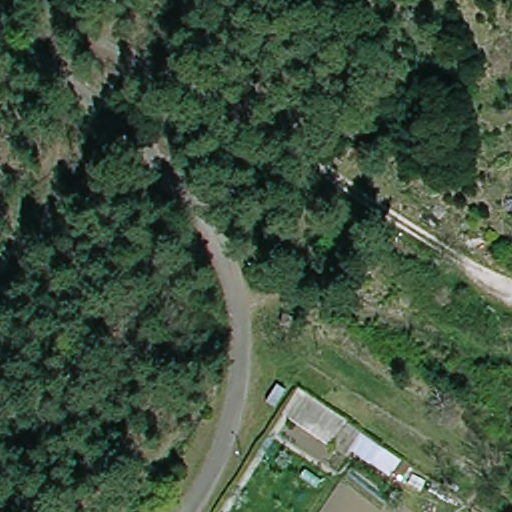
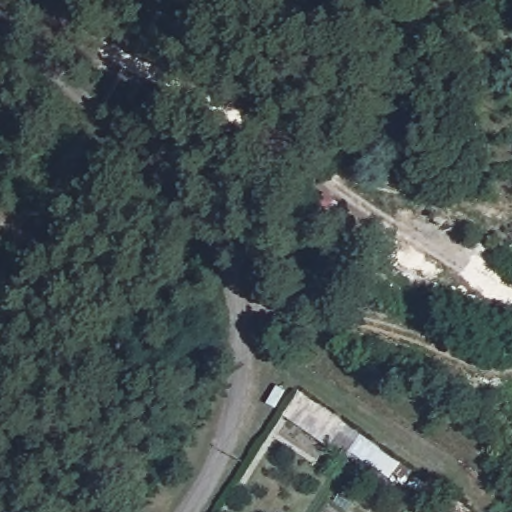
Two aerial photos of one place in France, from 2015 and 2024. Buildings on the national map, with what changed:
unchanged [(301,386),(405,459),(392,478),(352,453),(347,460),(323,446),(329,435),(295,409),(301,386)]

